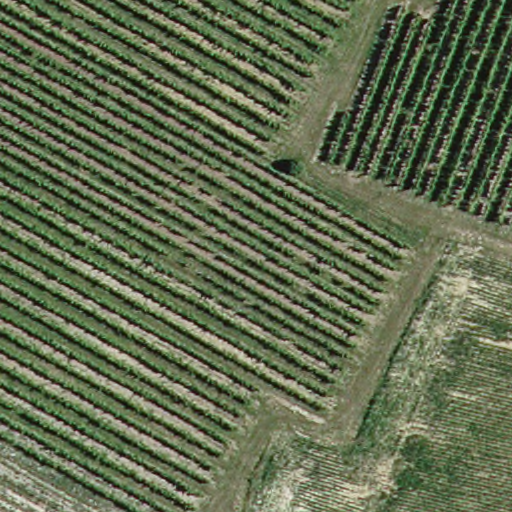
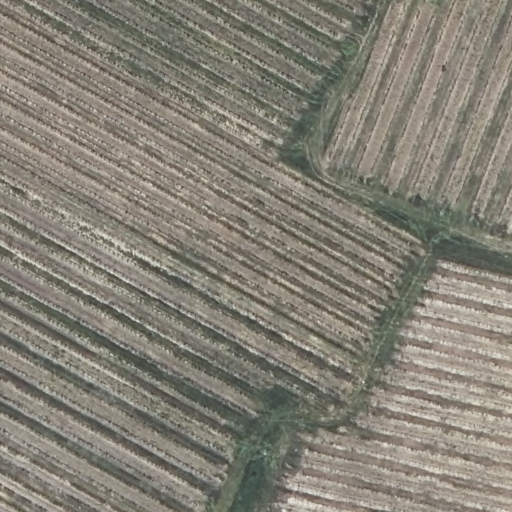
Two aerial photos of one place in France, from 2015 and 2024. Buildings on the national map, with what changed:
[]

